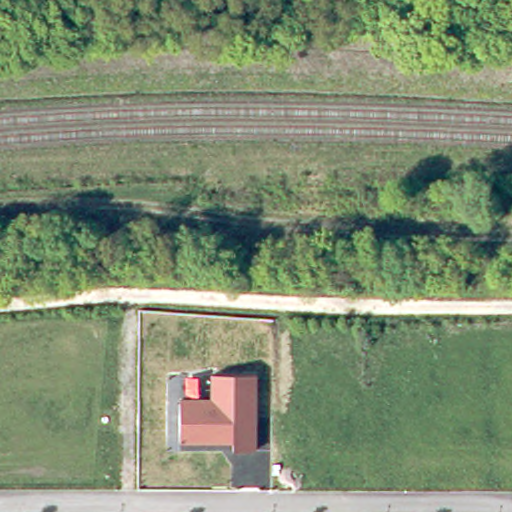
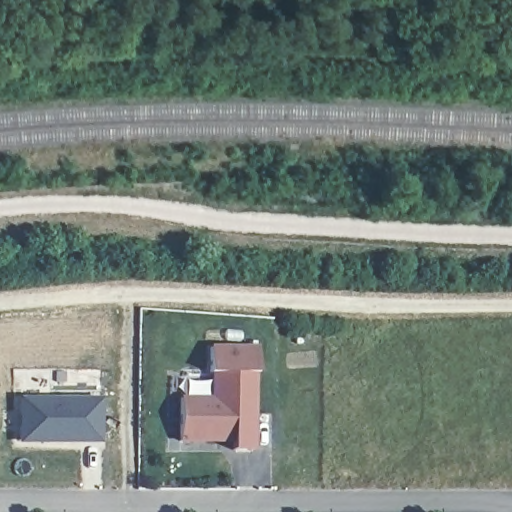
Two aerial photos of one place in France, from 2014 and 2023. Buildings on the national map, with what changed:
unchanged [(185,396),(199,396),(209,395),(208,350),(257,350),(255,451),(231,451),(231,442),(182,442),(181,398),(185,396)]
new [(102,400),(102,441),(86,442),(85,444),(49,444),(49,441),(22,441),(22,401),(102,400)]

